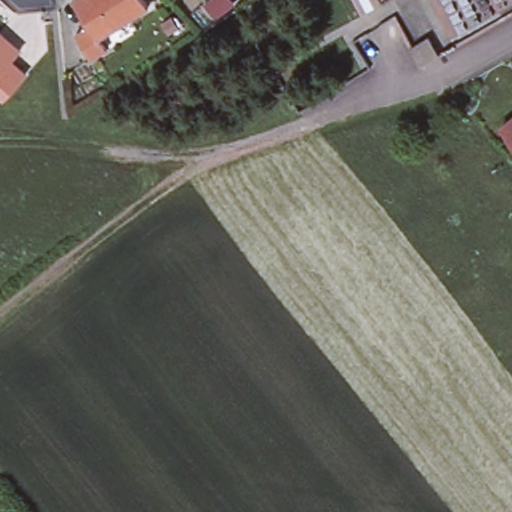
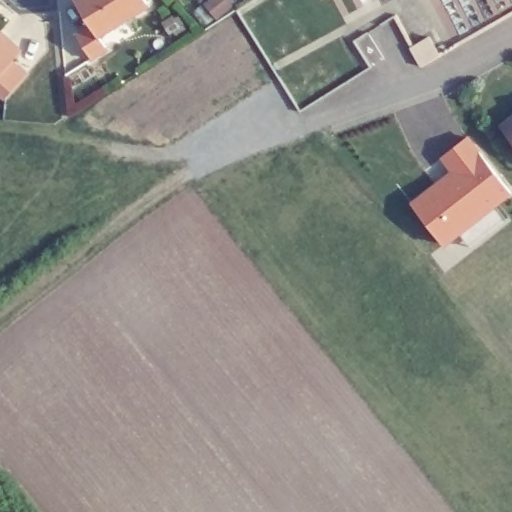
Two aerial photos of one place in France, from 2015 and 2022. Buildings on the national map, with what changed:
unchanged [(151,4),(101,36),(108,49),(93,58),(77,32),(91,23),(78,0),(148,0),(151,4)]
unchanged [(1,31),(22,49),(13,59),(28,73),(6,96),(0,90),(0,32),(1,31)]
unchanged [(427,36),(438,57),(424,64),(413,44),(427,36)]
unchanged [(512,135),(501,121),(512,111),(512,135)]
new [(472,247),(459,231),(444,243),(413,203),(454,171),(444,156),(469,137),(511,192),(496,204),(508,219),(472,247)]

